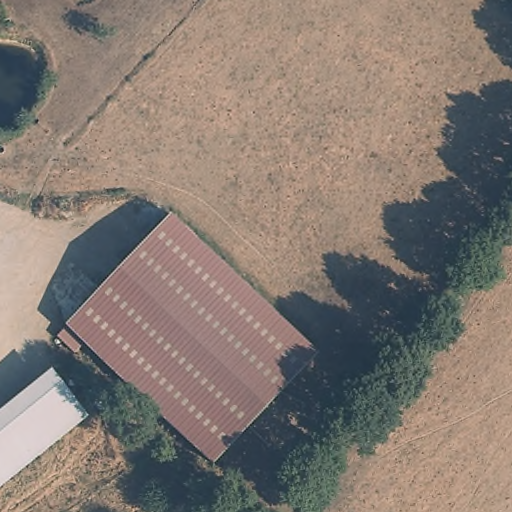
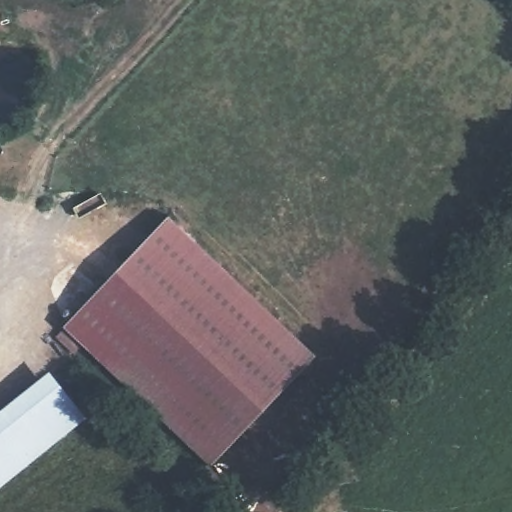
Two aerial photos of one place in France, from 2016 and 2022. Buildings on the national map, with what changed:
unchanged [(316,361),(207,465),(86,338),(78,346),(76,348),(59,330),(177,217),(178,216),(316,361)]
unchanged [(54,383),(86,431),(0,489),(0,420),(54,383)]

